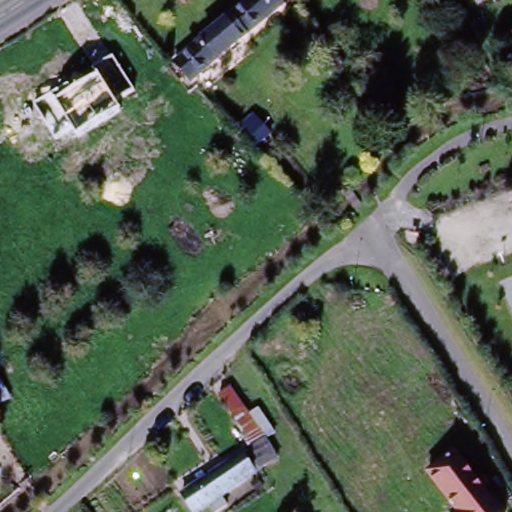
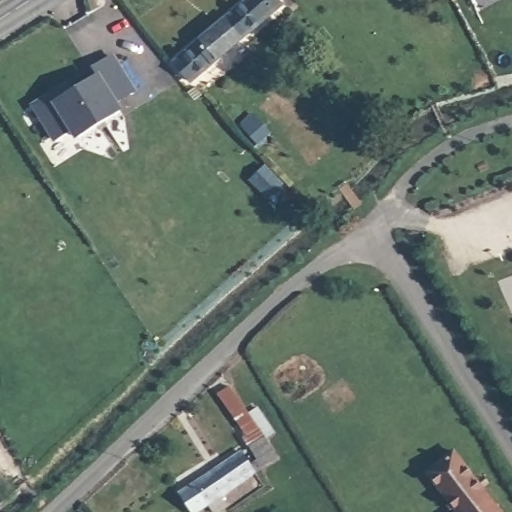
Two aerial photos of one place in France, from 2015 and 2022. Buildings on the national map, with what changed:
unchanged [(257,0),(270,15),(182,90),(166,72),(248,0),(257,0)]
new [(115,55),(138,90),(120,102),(126,114),(77,141),(72,132),(56,144),(32,105),(72,80),(78,90),(101,75),(94,68),(115,55)]
demolished [(469,66),(475,84),(446,92),(441,75),(469,66)]
unchanged [(267,127),(255,137),(242,125),(254,114),(267,127)]
demolished [(286,157),(274,166),(262,154),(272,144),(286,157)]
unchanged [(221,390),(234,383),(274,460),(257,470),(245,450),(251,446),(221,390)]
unchanged [(193,511),(181,490),(245,450),(257,470),(193,511)]
unchanged [(454,450),(496,512),(453,512),(425,467),(454,450)]

